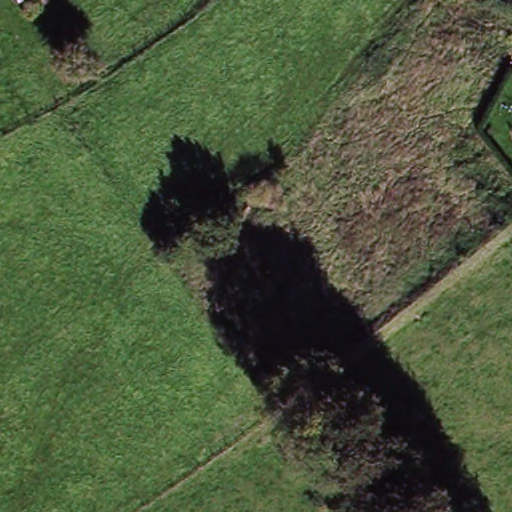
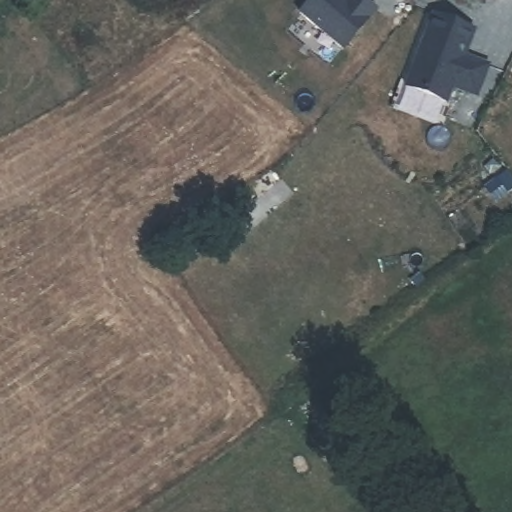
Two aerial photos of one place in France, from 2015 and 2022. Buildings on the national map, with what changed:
unchanged [(55,2),(53,0),(57,0),(55,2)]
new [(377,11),(342,51),(296,13),(308,0),(364,0),(377,11)]
new [(476,31),(467,56),(490,65),(478,99),(452,89),(446,104),(401,87),(431,13),(476,31)]
demolished [(258,214),(249,223),(240,214),(250,206),(258,214)]

